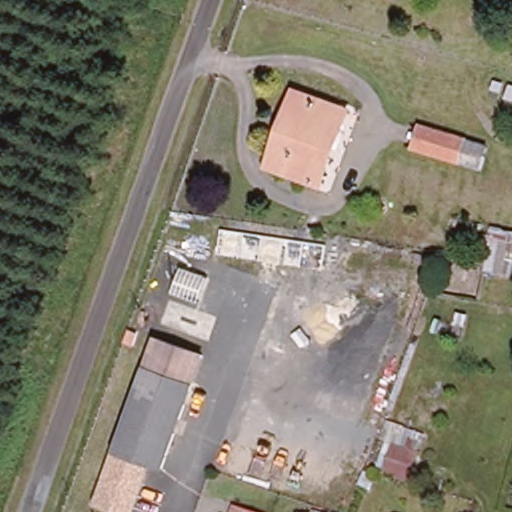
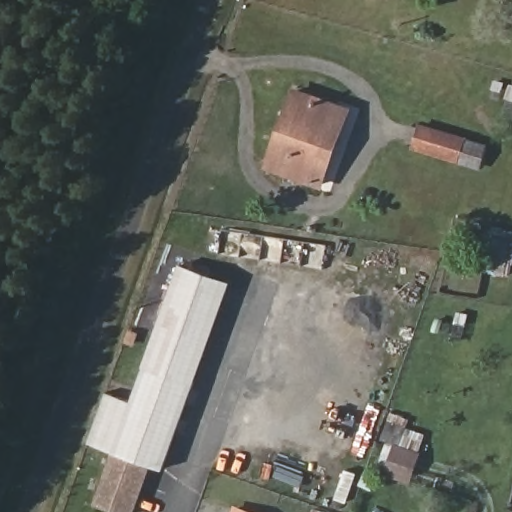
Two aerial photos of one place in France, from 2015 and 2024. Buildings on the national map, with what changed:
unchanged [(271,165),(297,87),(337,103),(352,108),(336,155),(325,184),(271,165)]
unchanged [(419,124),(488,145),(481,170),(412,147),(419,124)]
unchanged [(510,272),(486,268),(496,220),(512,221),(512,262),(510,272)]
new [(157,337),(180,262),(232,281),(205,353),(157,337)]
unchanged [(157,337),(207,354),(164,471),(151,466),(134,512),(115,512),(95,505),(115,453),(157,337)]
unchanged [(376,472),(386,440),(398,443),(404,427),(424,433),(418,451),(422,452),(410,485),(376,472)]
unchanged [(222,445),(251,453),(242,477),(214,468),(222,445)]
unchanged [(244,512),(236,512),(237,510),(244,512)]

